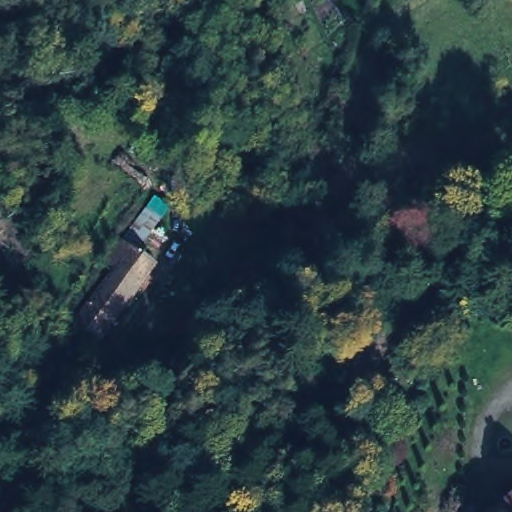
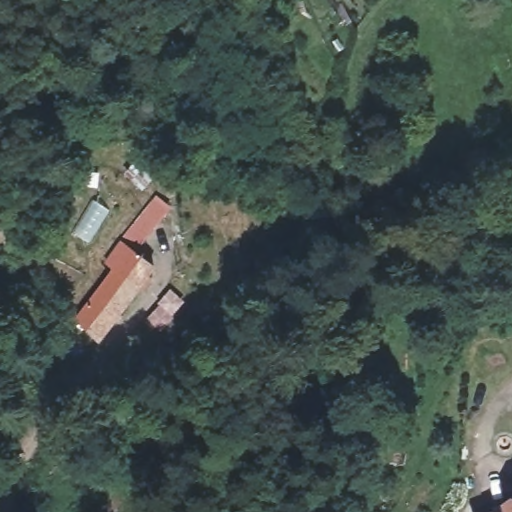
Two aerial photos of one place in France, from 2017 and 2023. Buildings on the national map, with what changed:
unchanged [(167,275),(110,335),(70,304),(110,269),(99,253),(125,232),(167,275)]
unchanged [(40,303),(45,290),(55,294),(48,308),(40,305),(40,303)]
unchanged [(392,342),(394,378),(378,379),(375,344),(392,342)]

